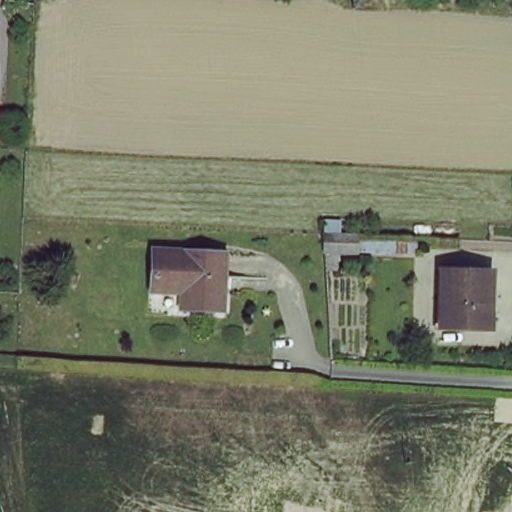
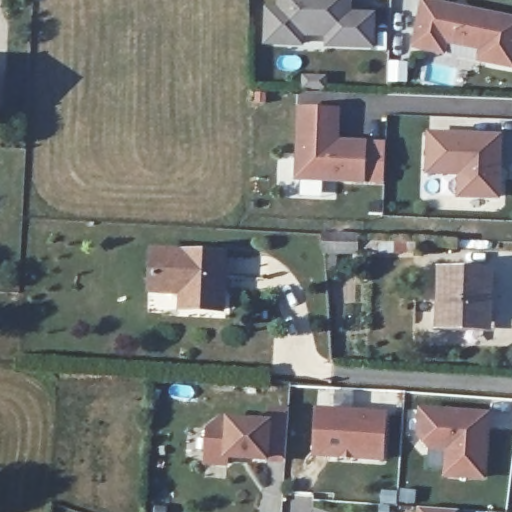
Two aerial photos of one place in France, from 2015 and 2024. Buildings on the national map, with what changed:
new [(277,6),(277,0),(352,0),(351,10),(376,10),(375,49),(324,48),(325,36),(304,36),(305,46),(263,45),(264,5),(277,6)]
new [(436,0),(512,15),(512,69),(475,61),(477,50),(445,44),(443,55),(409,48),(418,0),(436,0)]
new [(325,76),(325,86),(305,85),(305,75),(325,76)]
new [(296,105),(340,107),(339,138),(368,139),(366,183),(294,180),(296,105)]
new [(426,130),(502,133),(499,199),(456,197),(457,175),(424,174),(426,130)]
unchanged [(367,232),(366,250),(336,250),(336,231),(367,232)]
unchanged [(151,277),(153,245),(223,250),(222,306),(183,304),(183,291),(151,288),(151,277)]
unchanged [(490,270),(490,324),(439,321),(441,268),(490,270)]
unchanged [(268,420),(269,407),(288,409),(286,458),(228,454),(227,461),(206,460),(208,425),(220,416),(268,420)]
unchanged [(386,411),(383,456),(314,452),(316,407),(386,411)]
new [(487,413),(483,475),(446,472),(448,446),(429,446),(420,435),(422,408),(487,413)]
unchanged [(457,508),(456,512),(419,512),(420,505),(457,508)]

